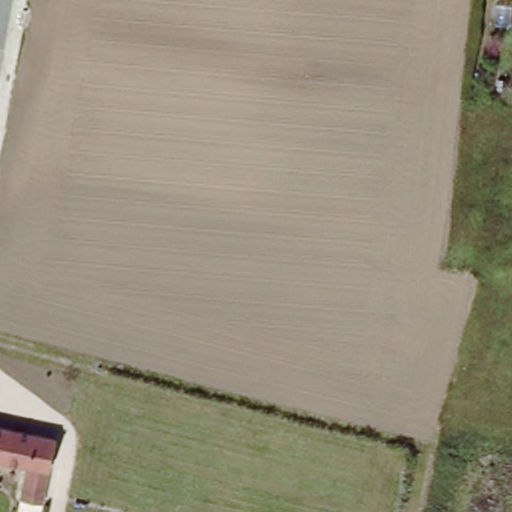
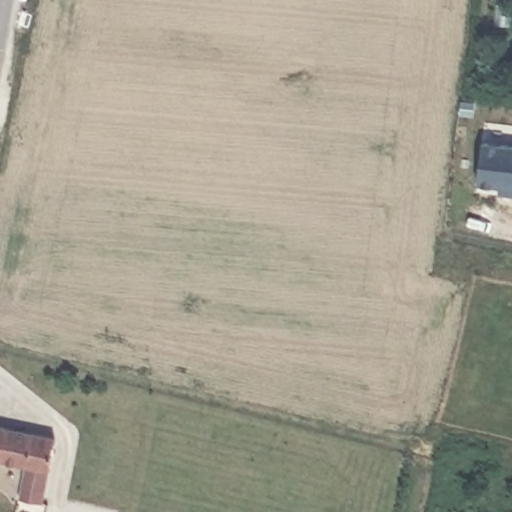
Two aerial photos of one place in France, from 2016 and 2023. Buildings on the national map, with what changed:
new [(477,184),(482,142),(512,146),(512,187),(477,184)]
new [(511,195),(498,194),(499,186),(512,187),(511,195)]
new [(511,195),(512,187),(512,195),(511,195)]
unchanged [(46,500),(23,495),(29,464),(0,460),(0,424),(59,435),(46,500)]

